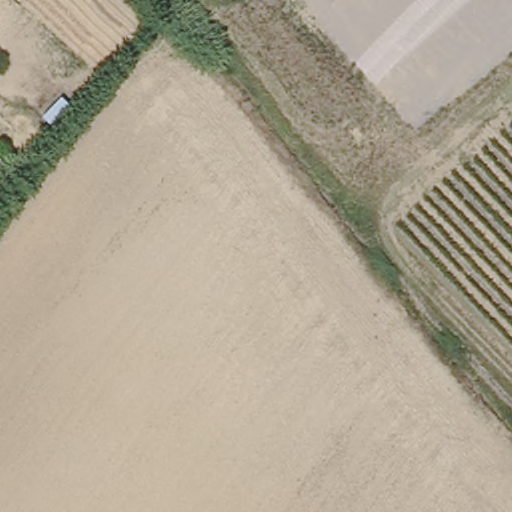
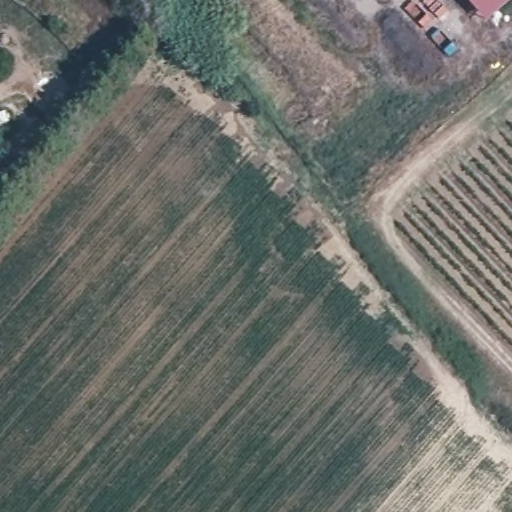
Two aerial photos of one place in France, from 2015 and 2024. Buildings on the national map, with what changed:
new [(471,0),(510,0),(488,19),(471,0)]

